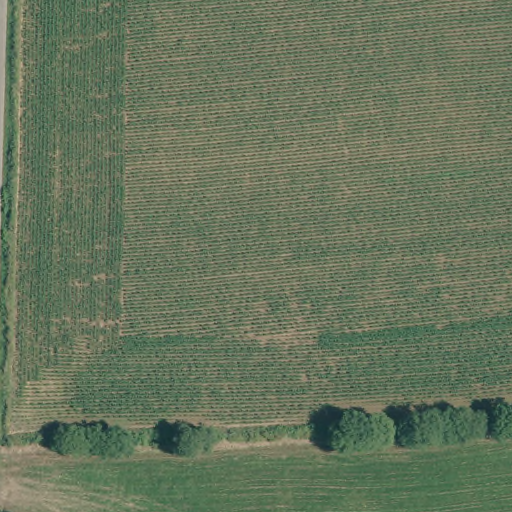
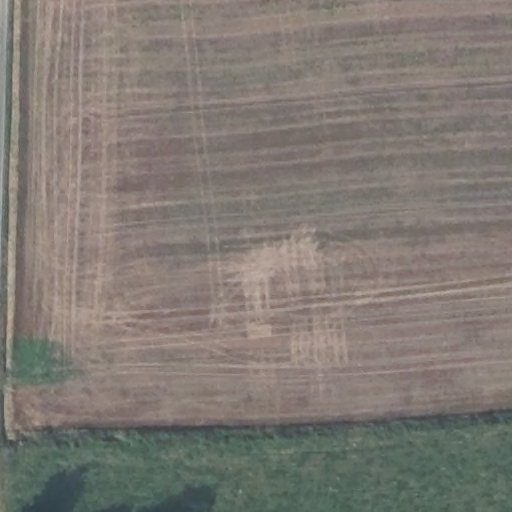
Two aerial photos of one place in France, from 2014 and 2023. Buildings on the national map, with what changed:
[]

